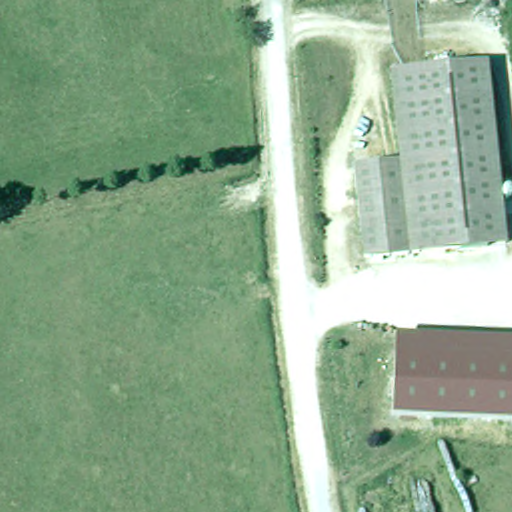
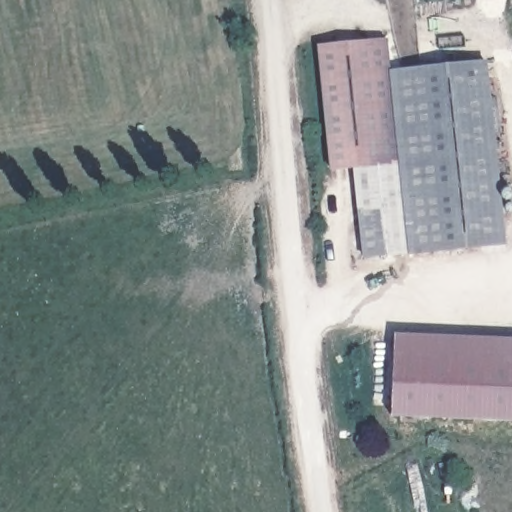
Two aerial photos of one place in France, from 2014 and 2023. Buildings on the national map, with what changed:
new [(400,160),(355,164),(332,168),(319,45),(388,39),(391,70),(400,160)]
unchanged [(505,241),(365,255),(355,164),(400,160),(391,70),(487,61),(505,241)]
unchanged [(512,331),(512,350),(399,346),(400,327),(512,331)]
unchanged [(512,350),(512,413),(397,408),(399,346),(512,350)]

